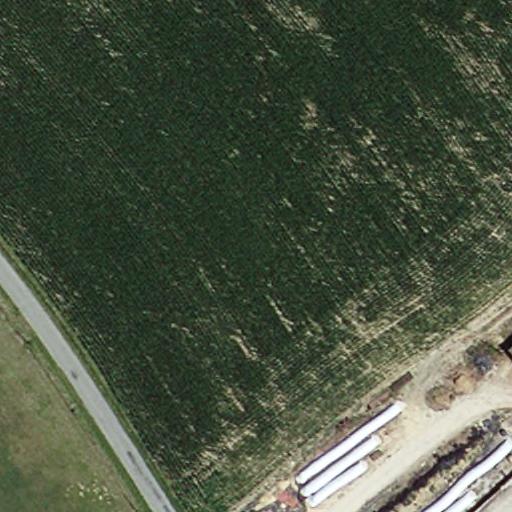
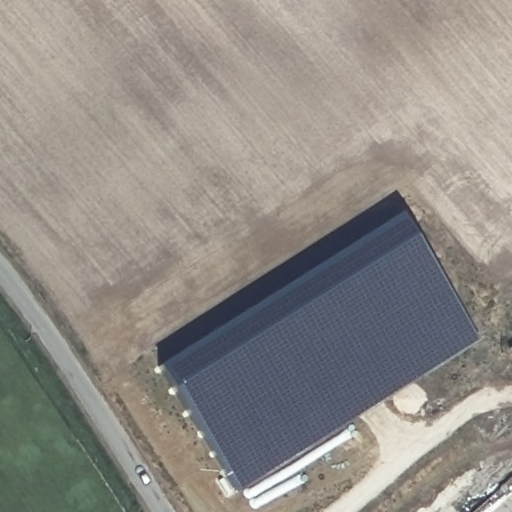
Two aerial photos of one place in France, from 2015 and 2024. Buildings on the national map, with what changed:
new [(400,214),(476,342),(236,492),(157,367),(400,214)]

